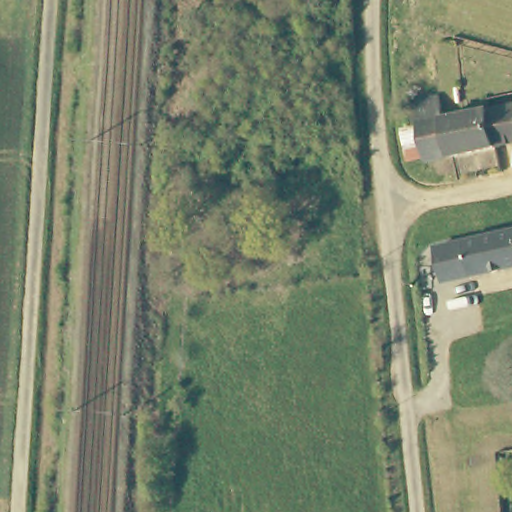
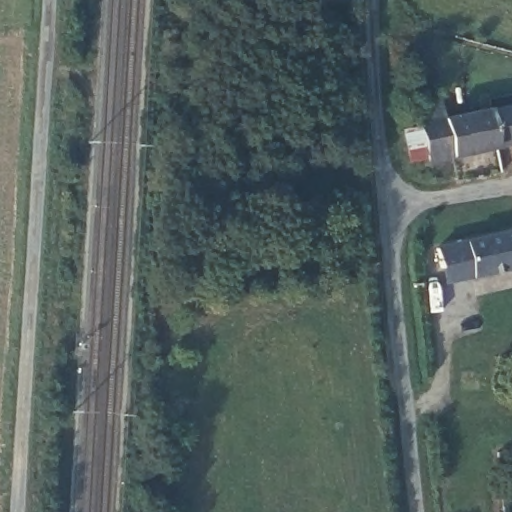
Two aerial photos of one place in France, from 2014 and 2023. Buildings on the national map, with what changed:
unchanged [(442,100),(446,122),(452,159),(432,164),(431,161),(426,130),(420,131),(416,104),(442,100)]
unchanged [(512,110),(512,146),(501,148),(494,113),(512,110)]
unchanged [(494,113),(501,148),(452,159),(446,122),(494,113)]
unchanged [(512,227),(512,265),(496,268),(489,231),(512,227)]
unchanged [(439,273),(437,263),(433,243),(461,237),(489,231),(496,268),(469,273),(440,279),(439,273)]

